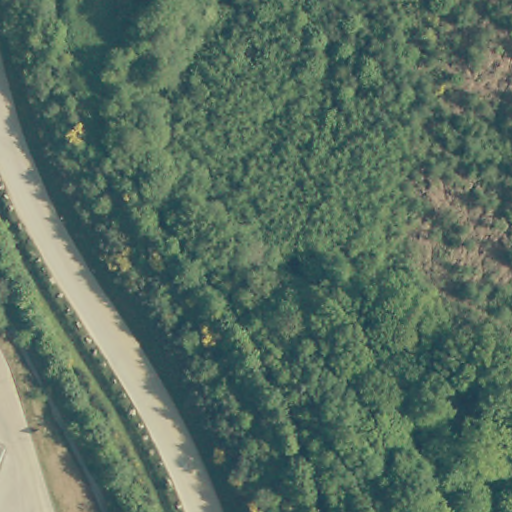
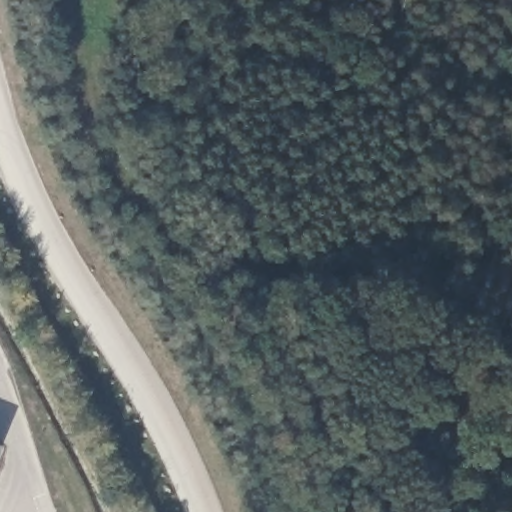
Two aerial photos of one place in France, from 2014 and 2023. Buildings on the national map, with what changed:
unchanged [(0,457),(0,449),(3,450),(0,457)]

